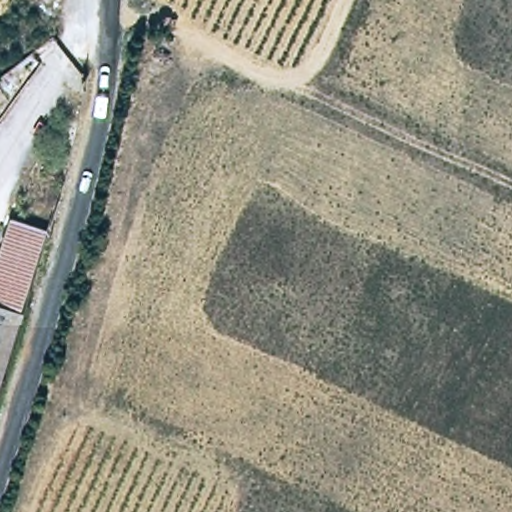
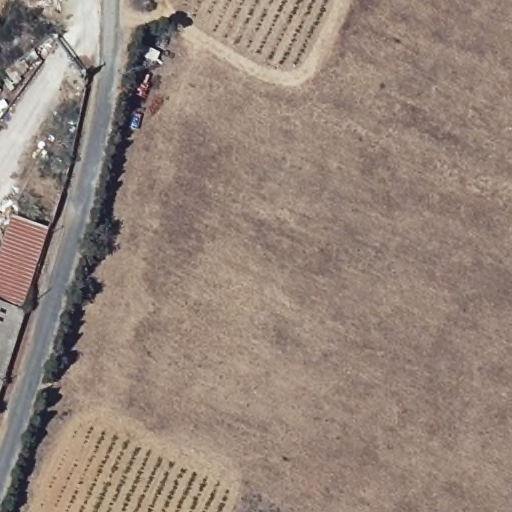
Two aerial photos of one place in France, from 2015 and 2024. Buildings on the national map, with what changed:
unchanged [(0,380),(0,235),(8,209),(48,223),(0,380)]

